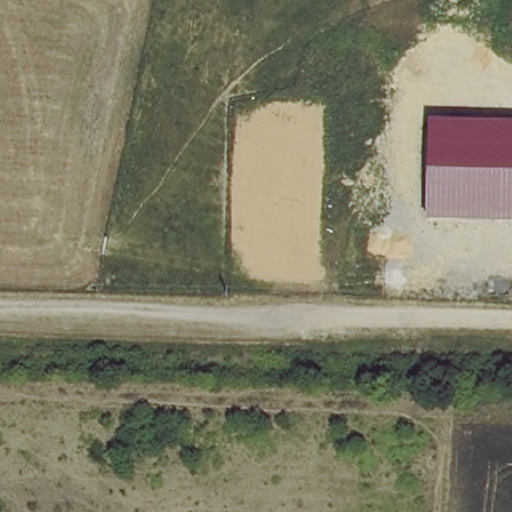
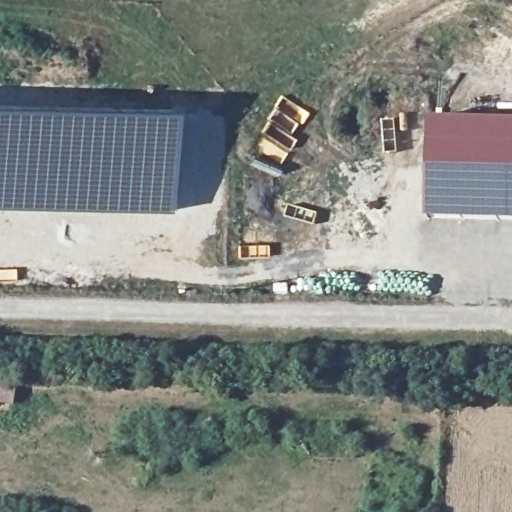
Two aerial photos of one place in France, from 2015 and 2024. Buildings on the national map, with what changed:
new [(174,108),(171,213),(18,213),(0,212),(0,103),(174,108)]
unchanged [(430,120),(512,121),(512,220),(427,218),(430,120)]

